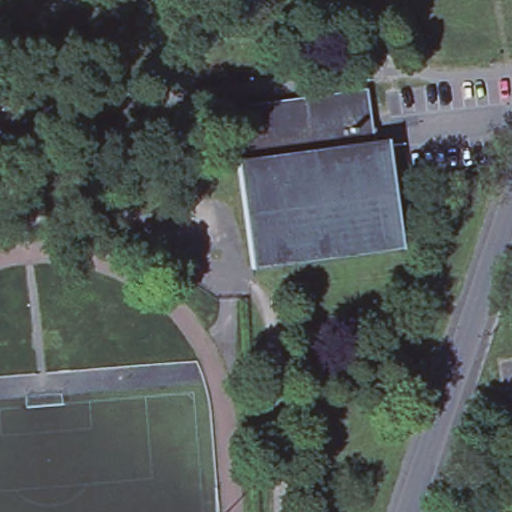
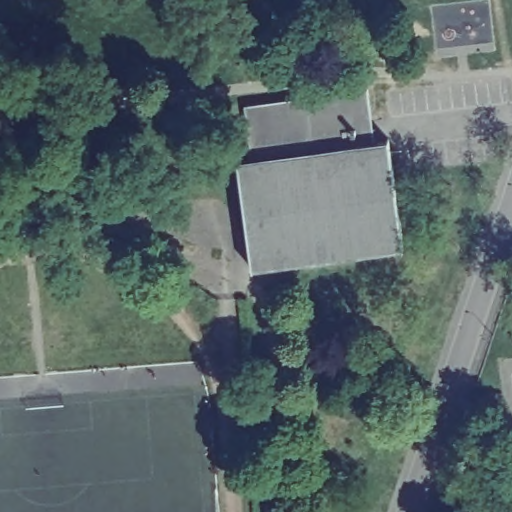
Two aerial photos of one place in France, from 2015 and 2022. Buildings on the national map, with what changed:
unchanged [(252,269),(239,165),(253,163),(247,105),(370,90),(377,145),(392,143),(404,251),(252,269)]

